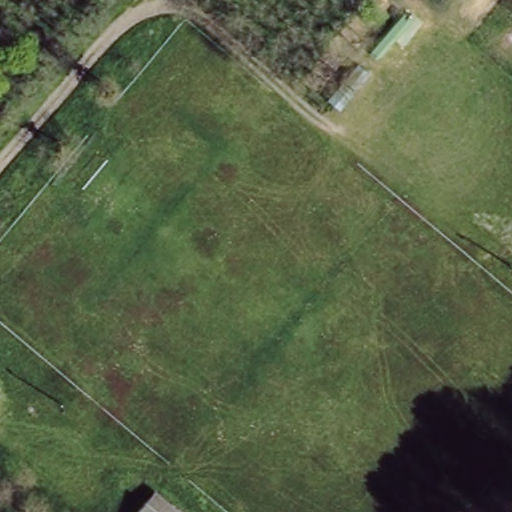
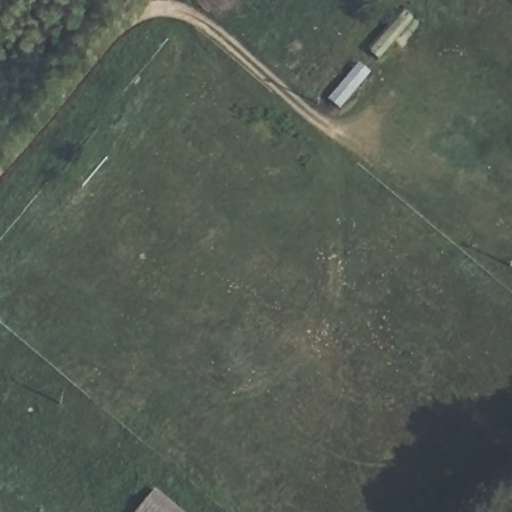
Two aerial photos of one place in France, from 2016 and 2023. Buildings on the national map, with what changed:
unchanged [(378,58),(365,48),(396,7),(415,23),(378,58)]
unchanged [(347,105),(332,93),(357,62),(372,75),(347,105)]
unchanged [(145,499),(150,493),(166,504),(179,512),(135,512),(145,499)]

